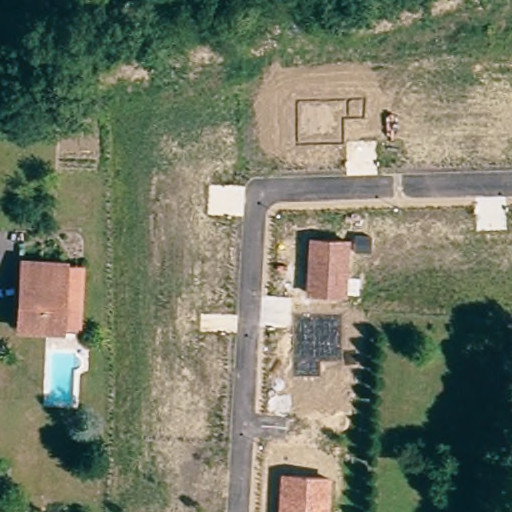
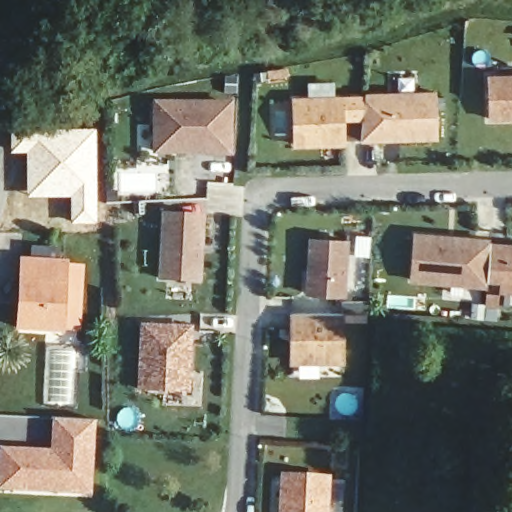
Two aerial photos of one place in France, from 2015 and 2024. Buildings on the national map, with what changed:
new [(490,122),(490,81),(492,81),(492,65),(512,65),(512,122),(508,122),(490,122)]
new [(362,121),(365,121),(366,96),(365,96),(365,92),(436,91),(438,139),(360,141),(362,121)]
new [(346,123),(346,146),(294,147),(293,98),(366,96),(365,121),(346,123)]
new [(157,110),(232,112),(231,162),(210,161),(210,159),(155,157),(157,110)]
new [(95,129),(97,225),(70,225),(70,199),(25,199),(25,155),(9,155),(8,128),(95,129)]
new [(163,223),(202,225),(200,288),(161,287),(163,223)]
new [(443,241),(450,242),(488,244),(487,253),(486,283),(485,288),(411,283),(415,239),(443,241)]
unchanged [(350,242),(346,297),(305,296),(310,240),(350,242)]
new [(487,253),(512,255),(512,295),(500,294),(500,284),(486,283),(487,253)]
unchanged [(11,331),(15,265),(59,267),(55,333),(11,331)]
unchanged [(59,267),(75,267),(71,334),(55,333),(59,267)]
new [(291,362),(291,315),(345,315),(345,363),(291,362)]
new [(145,332),(191,334),(190,397),(142,396),(145,332)]
new [(51,417),(96,420),(91,497),(0,492),(0,446),(49,448),(51,417)]
unchanged [(329,512),(277,512),(280,472),(330,475),(329,512)]

